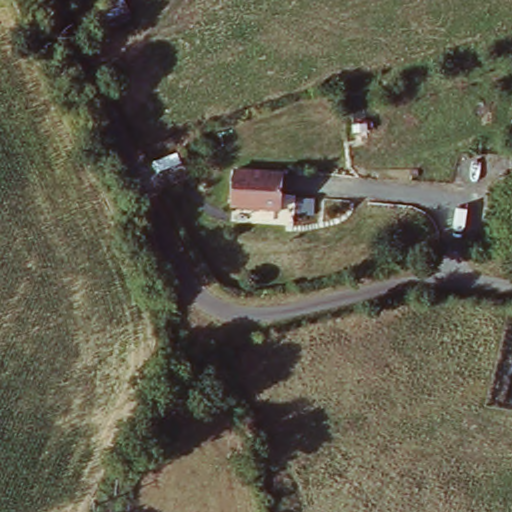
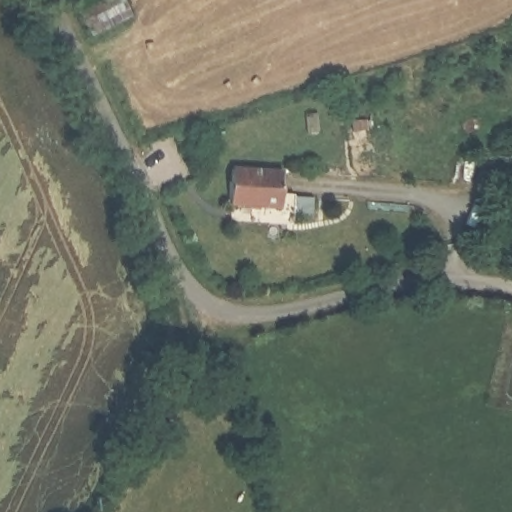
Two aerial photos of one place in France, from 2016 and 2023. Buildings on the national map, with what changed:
unchanged [(124,0),(133,16),(93,36),(82,14),(108,0),(124,0)]
unchanged [(231,167),(280,171),(278,192),(291,193),(289,222),(245,220),(246,204),(228,202),(231,167)]

